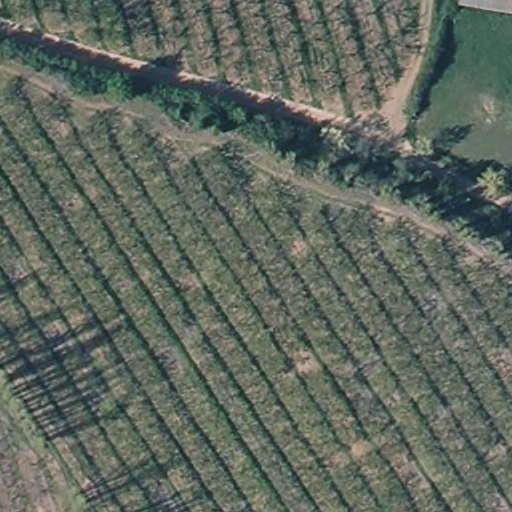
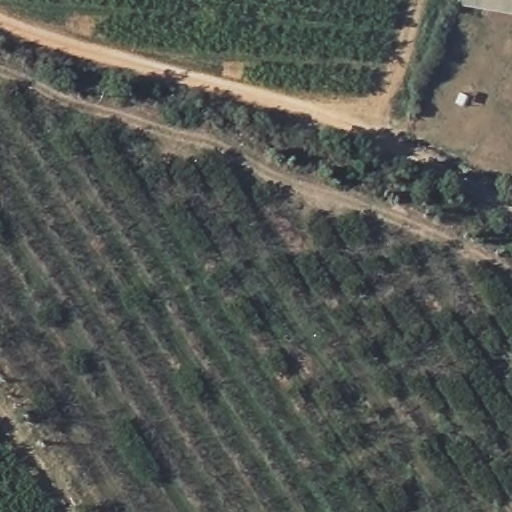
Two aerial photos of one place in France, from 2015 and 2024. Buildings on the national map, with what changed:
unchanged [(460,0),(512,0),(512,15),(460,7),(460,0)]

